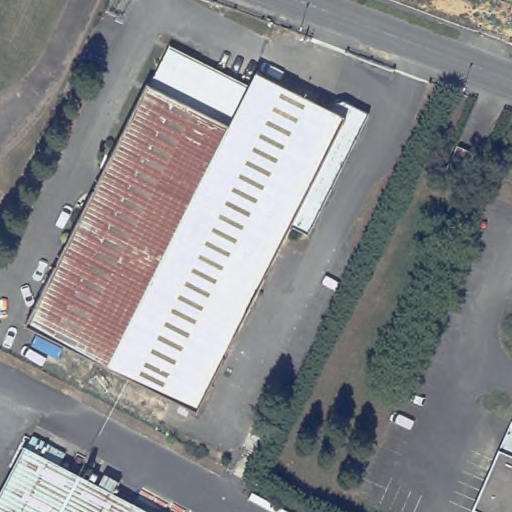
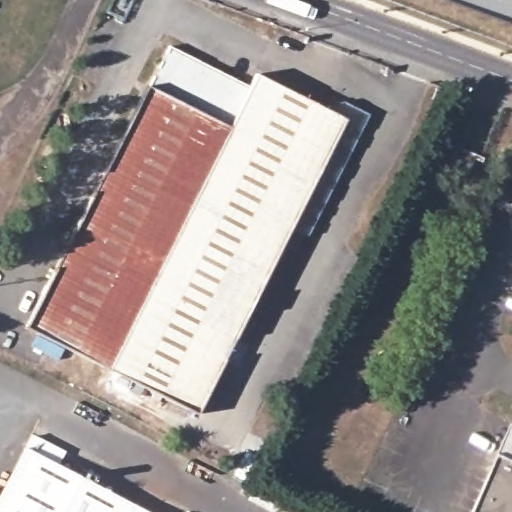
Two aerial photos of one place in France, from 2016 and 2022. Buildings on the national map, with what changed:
new [(512,23),(448,0),(512,0),(512,23)]
unchanged [(57,344),(26,328),(147,87),(150,89),(171,47),(181,53),(249,86),(107,369),(57,344)]
unchanged [(249,86),(255,75),(325,109),(327,106),(341,101),(368,115),(307,234),(291,226),(196,413),(107,369),(249,86)]
unchanged [(483,164),(482,167),(478,165),(469,184),(450,174),(461,152),(483,164)]
unchanged [(512,512),(479,512),(512,438),(512,512)]
unchanged [(25,453),(138,512),(0,512),(0,500),(14,473),(25,453)]

